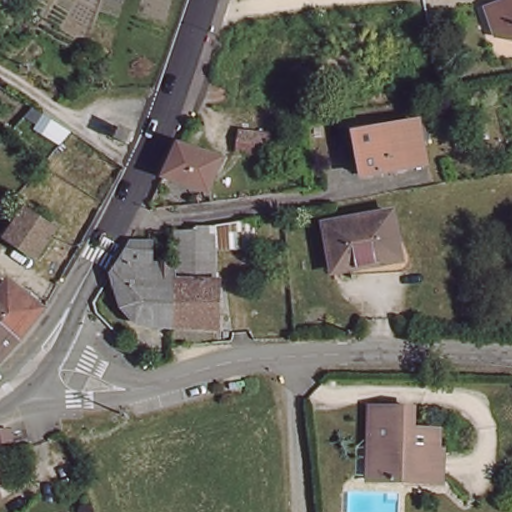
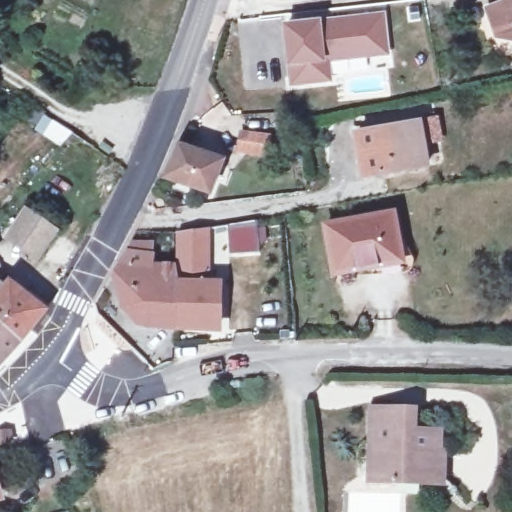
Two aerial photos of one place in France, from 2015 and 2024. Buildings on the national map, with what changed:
unchanged [(503,0),(504,0),(512,3),(512,37),(491,43),(482,14),(501,8),(503,0)]
new [(320,21),(384,13),(389,56),(329,63),(331,82),(288,87),(287,67),(282,25),(320,21)]
new [(438,119),(442,139),(423,142),(420,122),(438,119)]
unchanged [(417,123),(424,161),(366,171),(363,149),(365,146),(363,134),(417,123)]
unchanged [(244,135),(248,158),(225,160),(221,138),(244,135)]
unchanged [(218,165),(205,196),(161,180),(176,148),(218,165)]
unchanged [(36,260),(5,239),(25,214),(36,222),(52,234),(36,260)]
unchanged [(387,214),(396,263),(359,270),(358,266),(331,270),(324,225),(387,214)]
unchanged [(230,222),(251,219),(253,255),(211,258),(209,226),(230,222)]
unchanged [(137,244),(148,244),(149,268),(170,266),(169,232),(209,226),(211,258),(215,326),(173,325),(138,324),(120,300),(110,275),(134,232),(137,244)]
unchanged [(25,333),(20,340),(13,346),(0,356),(0,289),(8,280),(43,313),(25,333)]
unchanged [(404,417),(403,439),(429,440),(428,463),(420,463),(420,482),(386,482),(386,490),(358,490),(360,417),(390,417),(404,417)]
unchanged [(0,504),(0,498),(2,504),(0,504)]

